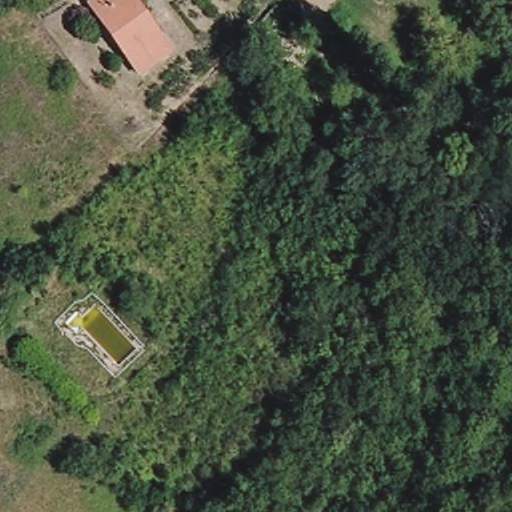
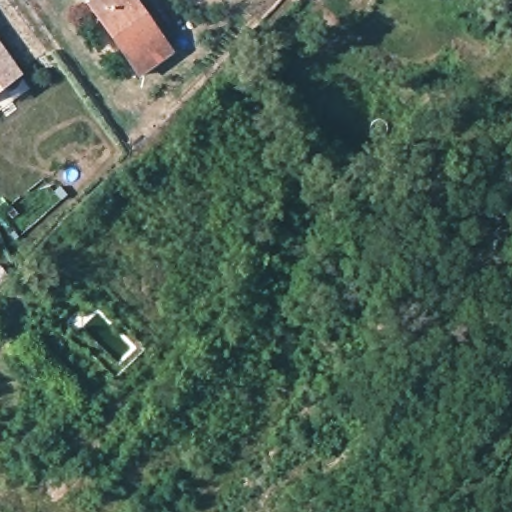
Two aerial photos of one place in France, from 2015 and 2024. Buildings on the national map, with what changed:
unchanged [(91,0),(138,0),(166,51),(129,72),(91,0)]
new [(0,92),(0,43),(23,75),(0,92)]

